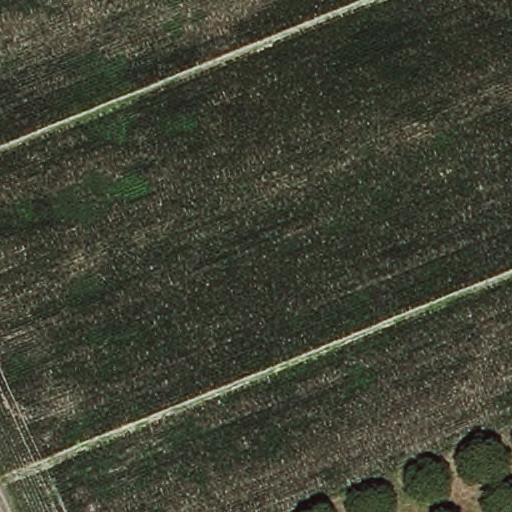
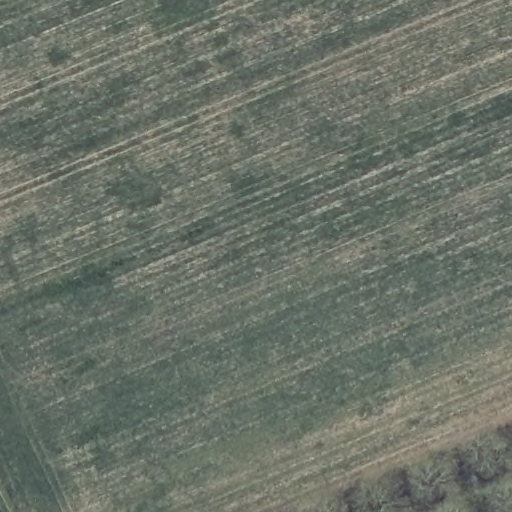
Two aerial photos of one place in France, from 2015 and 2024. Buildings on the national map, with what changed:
[]

